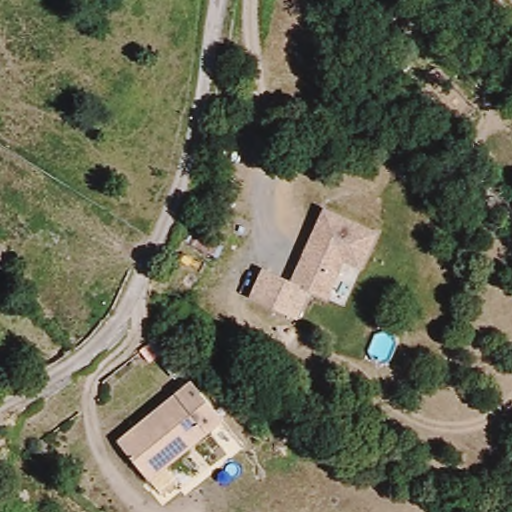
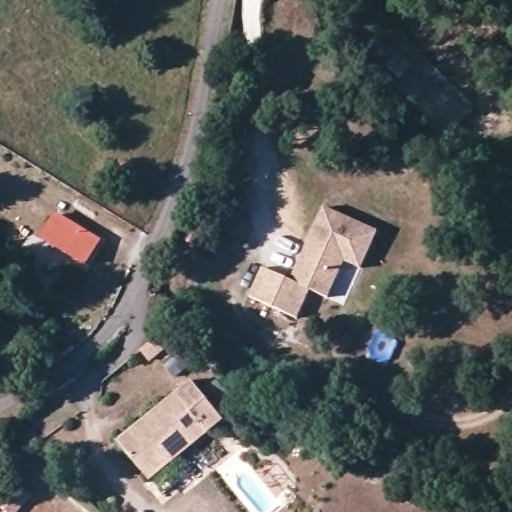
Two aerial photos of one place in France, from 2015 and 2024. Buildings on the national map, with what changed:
unchanged [(378,231),(362,268),(345,261),(329,297),(311,290),(297,318),(250,297),(264,267),(292,280),(325,207),(378,231)]
new [(102,241),(87,266),(40,237),(55,212),(102,241)]
unchanged [(139,350),(159,336),(166,345),(147,360),(139,350)]
unchanged [(174,378),(163,363),(177,352),(189,367),(174,378)]
unchanged [(113,440),(190,383),(220,423),(144,480),(113,440)]

